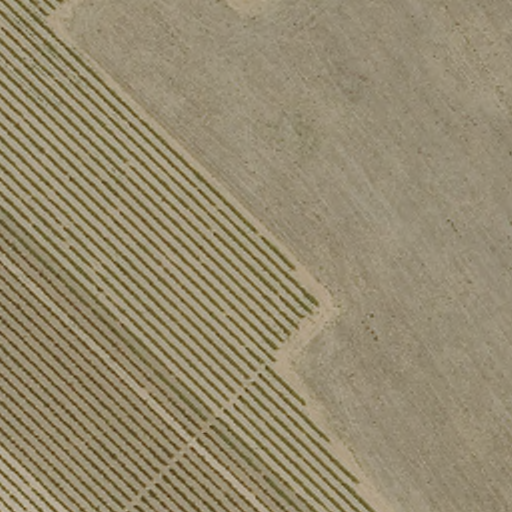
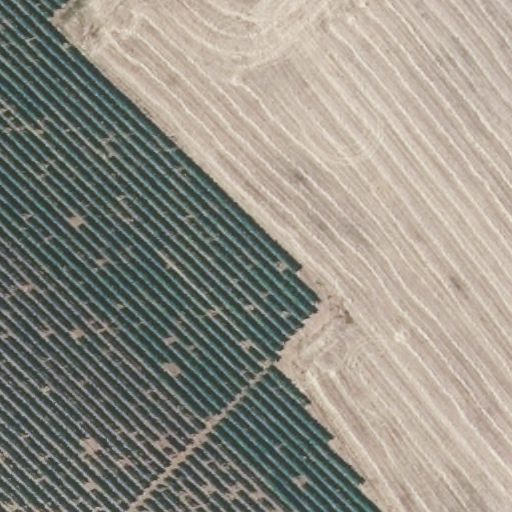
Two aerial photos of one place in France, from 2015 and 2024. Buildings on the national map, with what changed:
[]

